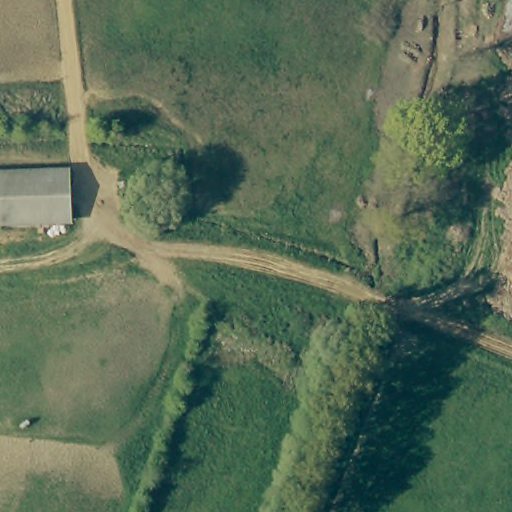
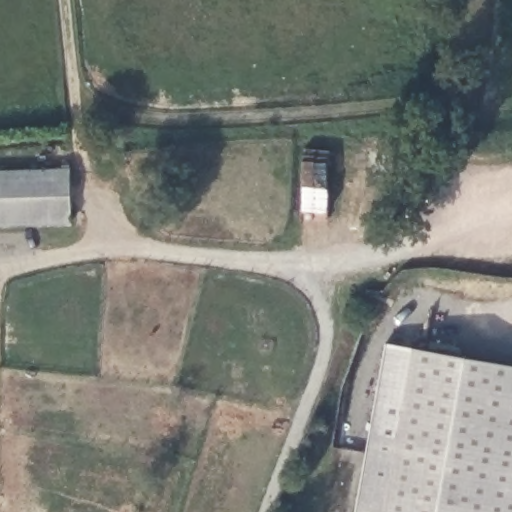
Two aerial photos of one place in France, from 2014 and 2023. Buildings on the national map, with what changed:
unchanged [(69,226),(0,227),(0,175),(69,175),(69,226)]
new [(512,512),(358,512),(388,345),(512,368),(512,512)]

